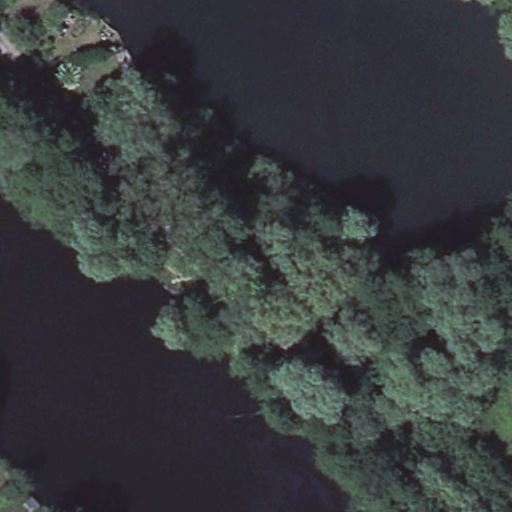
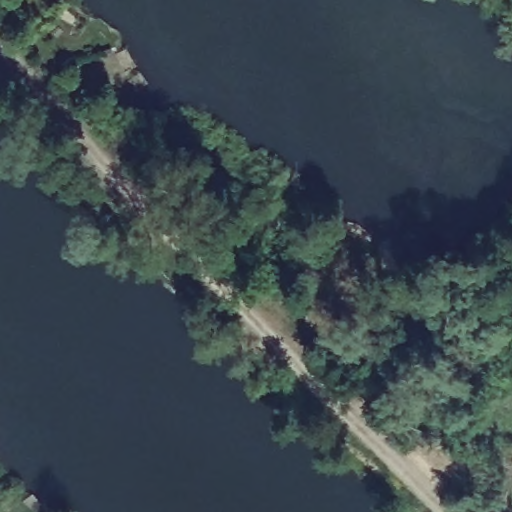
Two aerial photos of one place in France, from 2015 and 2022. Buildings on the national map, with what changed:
unchanged [(362,235),(357,247),(340,241),(346,229),(362,235)]

